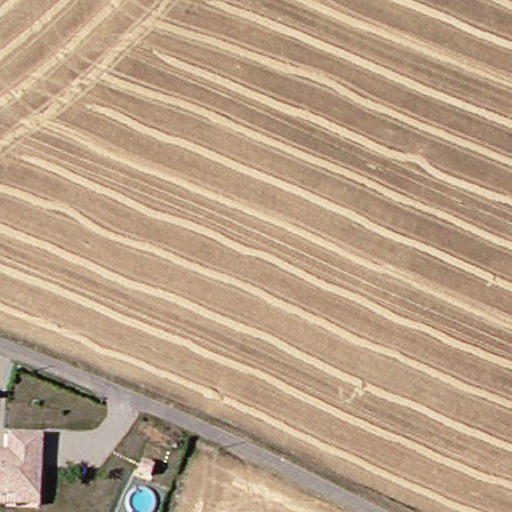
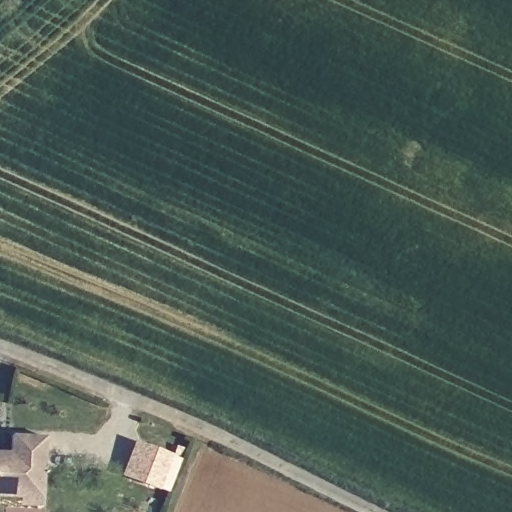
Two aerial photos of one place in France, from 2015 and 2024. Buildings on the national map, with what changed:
unchanged [(5,451),(12,451),(13,433),(47,436),(42,491),(41,506),(19,505),(20,496),(0,494),(0,450),(5,451)]
new [(161,492),(122,477),(135,443),(174,458),(161,492)]

